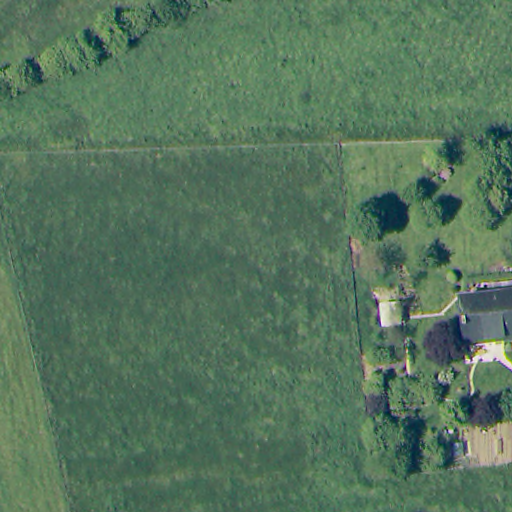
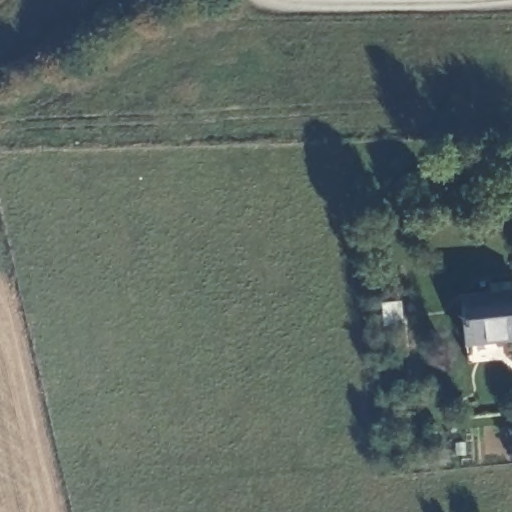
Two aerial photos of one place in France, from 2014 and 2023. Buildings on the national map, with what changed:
unchanged [(461,296),(512,291),(512,339),(467,344),(461,296)]

